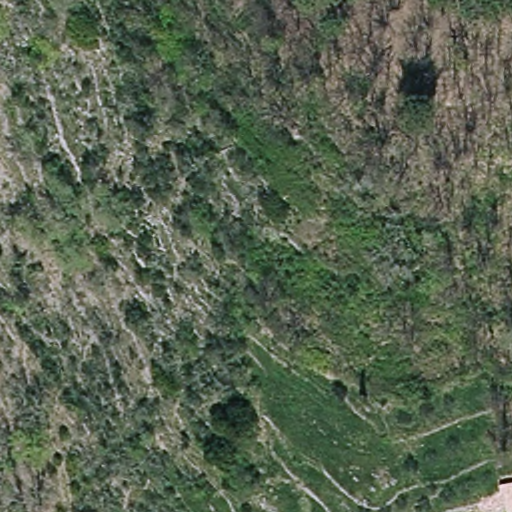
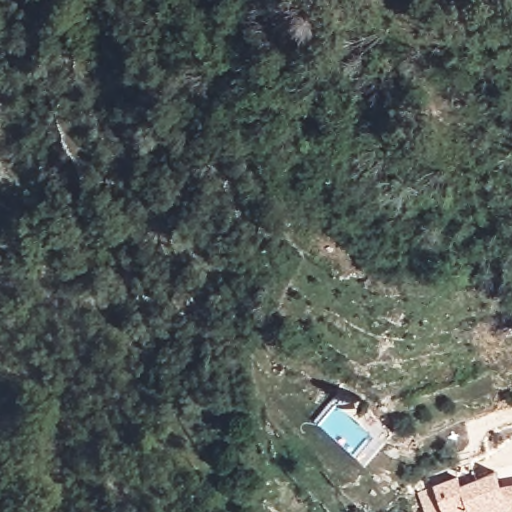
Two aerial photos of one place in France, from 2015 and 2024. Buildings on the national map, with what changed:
new [(505,506),(492,512),(426,512),(417,490),(435,482),(460,475),(462,482),(495,470),(502,487),(500,487),(505,506)]
unchanged [(512,485),(512,512),(506,512),(500,487),(512,485)]

